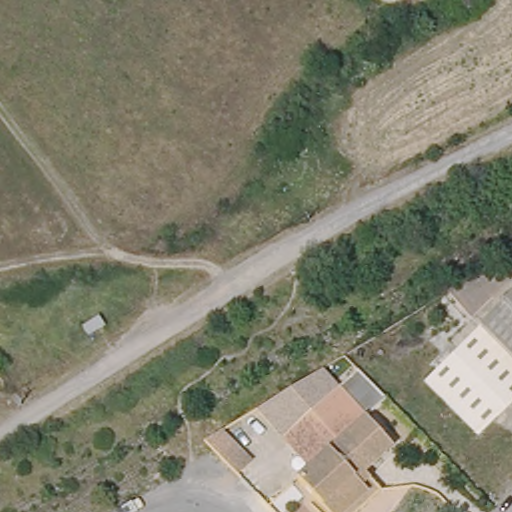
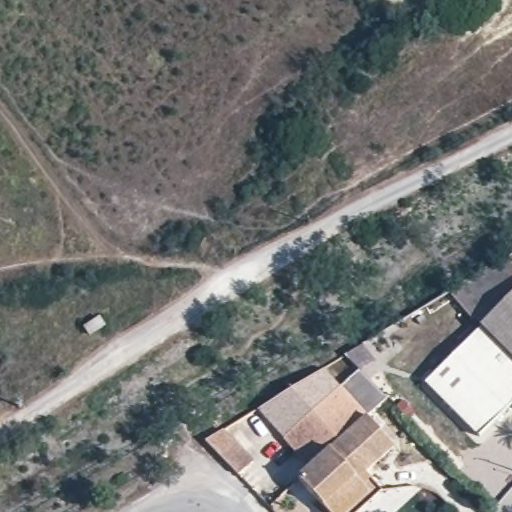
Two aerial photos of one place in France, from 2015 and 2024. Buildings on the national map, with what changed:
unchanged [(465,315),(445,292),(498,260),(512,272),(512,292),(476,326),(465,315)]
unchanged [(419,381),(512,292),(512,400),(472,437),(419,381)]
unchanged [(391,450),(363,473),(368,479),(332,512),(321,512),(310,497),(295,478),(308,468),(259,408),(320,370),(335,388),(357,367),(389,400),(365,421),(391,450)]
unchanged [(203,445),(218,436),(227,449),(232,443),(250,461),(232,477),(203,445)]
unchanged [(357,512),(332,512),(368,479),(380,492),(357,512)]
unchanged [(310,497),(321,512),(312,512),(304,502),(310,497)]

